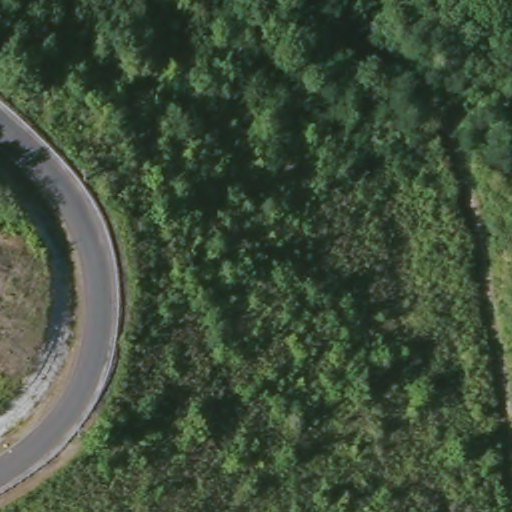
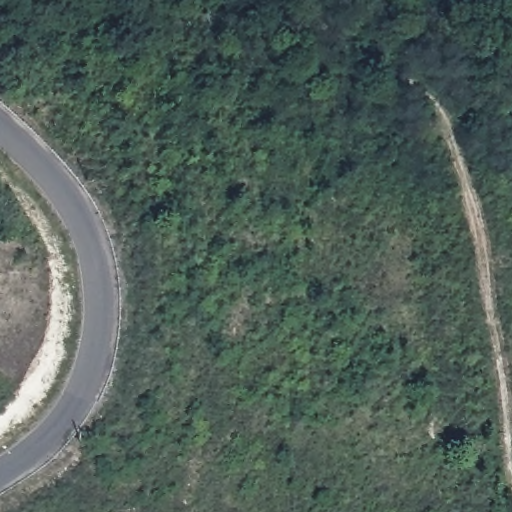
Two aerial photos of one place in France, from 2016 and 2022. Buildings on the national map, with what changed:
[]

